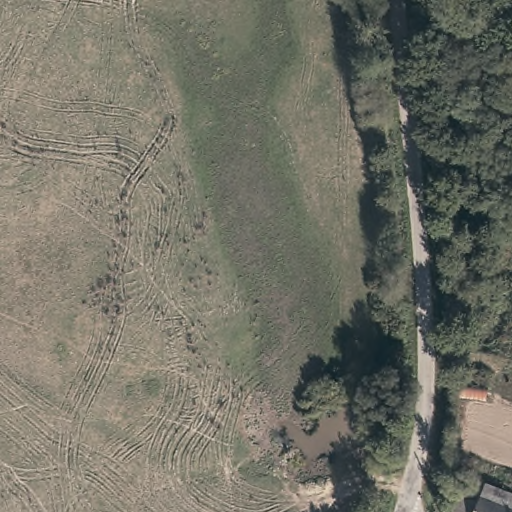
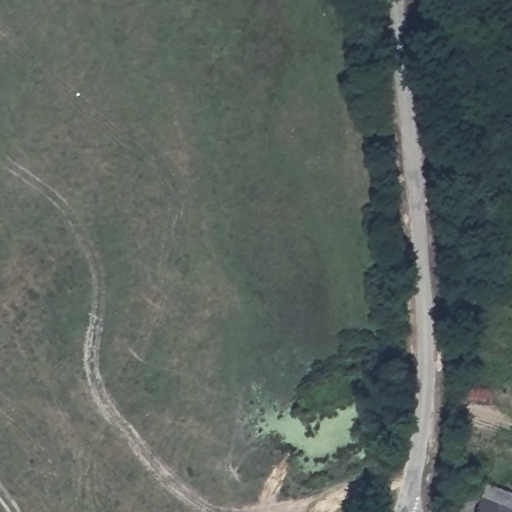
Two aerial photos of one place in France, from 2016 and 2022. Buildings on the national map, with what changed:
unchanged [(512,486),(512,512),(447,512),(459,482),(467,485),(471,474),(486,479),(488,476),(512,486)]

